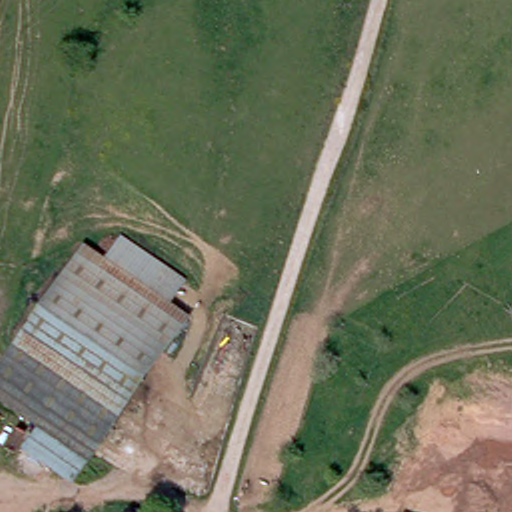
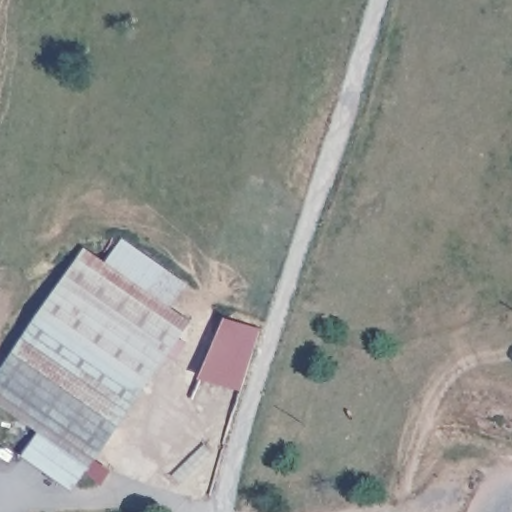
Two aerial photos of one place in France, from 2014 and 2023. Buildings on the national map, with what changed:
unchanged [(118,241),(178,282),(161,306),(101,265),(118,241)]
unchanged [(184,321),(70,485),(21,451),(36,430),(0,405),(0,367),(79,250),(101,265),(161,306),(184,321)]
new [(241,390),(199,376),(226,316),(261,327),(241,390)]

